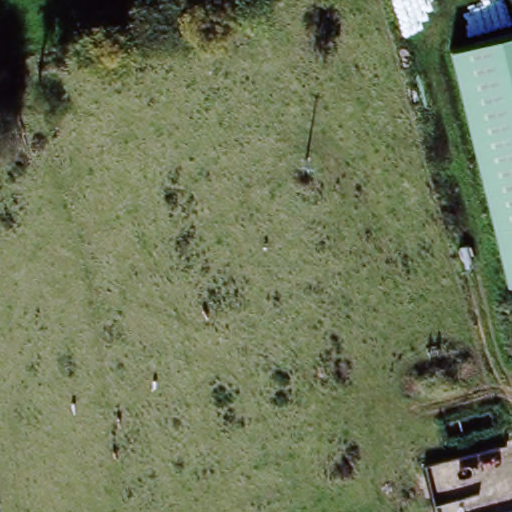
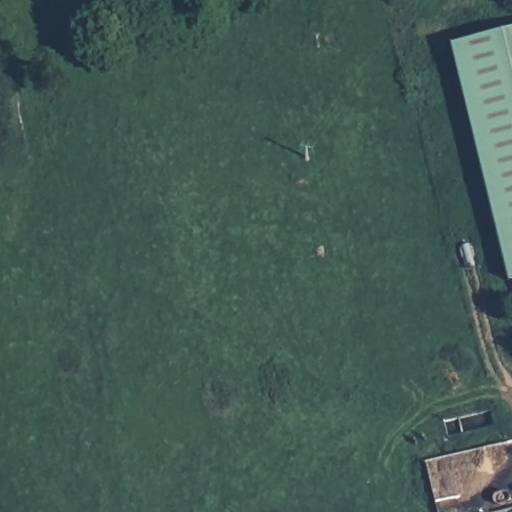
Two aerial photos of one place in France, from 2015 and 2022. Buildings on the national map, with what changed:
unchanged [(450,48),(512,33),(512,282),(507,283),(450,48)]

